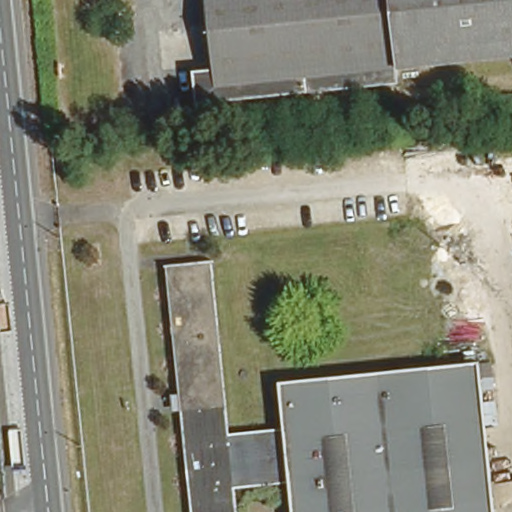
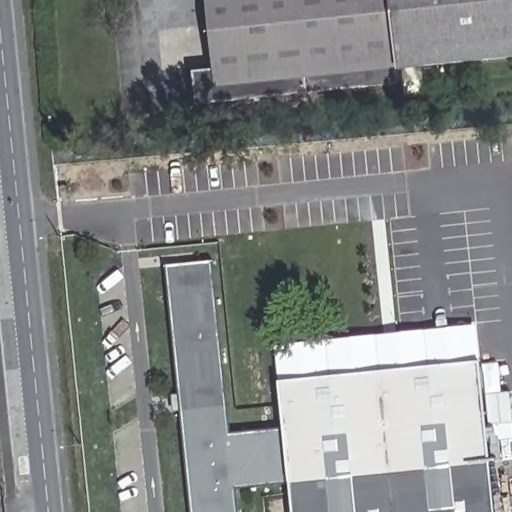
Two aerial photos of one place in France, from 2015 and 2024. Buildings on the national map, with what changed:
unchanged [(398,74),(399,87),(197,108),(193,76),(213,73),(205,0),(512,0),(512,62),(398,74)]
unchanged [(494,512),(293,512),(290,488),(235,493),(237,512),(192,512),(183,416),(174,417),(173,400),(180,400),(167,270),(213,266),(229,439),(284,433),(279,388),(479,367),(494,512)]
new [(279,388),(275,345),(475,325),(479,367),(279,388)]

